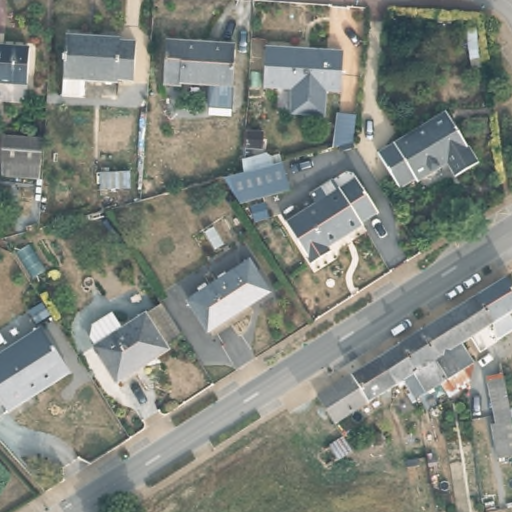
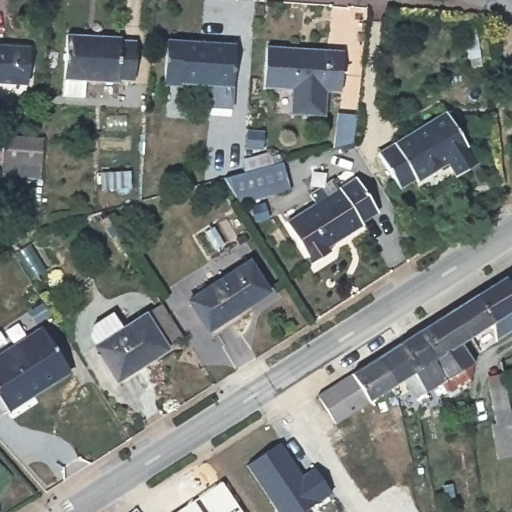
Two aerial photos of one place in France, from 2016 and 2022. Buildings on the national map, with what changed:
unchanged [(480,29),(485,69),(472,71),(467,31),(480,29)]
unchanged [(127,38),(127,42),(142,42),(139,84),(124,82),(124,87),(90,84),(89,97),(66,94),(70,34),(127,38)]
unchanged [(234,46),(231,86),(183,83),(182,88),(162,86),(166,41),(234,46)]
unchanged [(35,47),(32,80),(0,78),(0,45),(35,47)]
unchanged [(347,52),(345,94),(330,93),(328,118),(295,116),(297,91),(268,89),(271,47),(347,52)]
unchanged [(449,110),(482,163),(458,177),(449,162),(419,182),(416,177),(400,187),(378,154),(449,110)]
unchanged [(358,120),(356,146),(328,153),(332,117),(358,120)]
unchanged [(43,147),(41,173),(2,170),(5,144),(43,147)]
unchanged [(237,196),(225,176),(241,172),(283,160),(291,188),(268,195),(242,202),(237,196)]
unchanged [(137,172),(136,192),(101,190),(101,171),(137,172)]
unchanged [(362,176),(382,209),(365,220),(367,224),(332,249),(334,253),(316,265),(290,222),(362,176)]
unchanged [(251,260),(272,293),(212,333),(191,299),(251,260)]
unchanged [(512,285),(512,314),(511,315),(512,316),(512,331),(497,340),(494,323),(493,322),(477,295),(507,276),(512,285)]
unchanged [(477,295),(493,322),(494,323),(466,341),(451,311),(477,295)]
unchanged [(155,310),(176,346),(123,378),(101,342),(155,310)]
unchanged [(402,382),(399,383),(382,354),(402,342),(418,332),(451,311),(466,341),(459,346),(465,356),(469,362),(466,365),(458,369),(465,382),(443,395),(440,389),(436,383),(430,387),(411,398),(402,382)]
unchanged [(45,332),(67,368),(25,396),(31,406),(13,417),(0,395),(0,361),(45,332)]
unchanged [(335,422),(317,395),(382,354),(399,383),(335,422)]
unchanged [(512,456),(494,460),(488,423),(494,423),(487,377),(504,375),(512,419),(512,456)]
unchanged [(348,442),(357,455),(342,465),(333,452),(348,442)]
new [(303,512),(278,512),(247,465),(280,443),(302,476),(314,467),(331,493),(303,512)]

